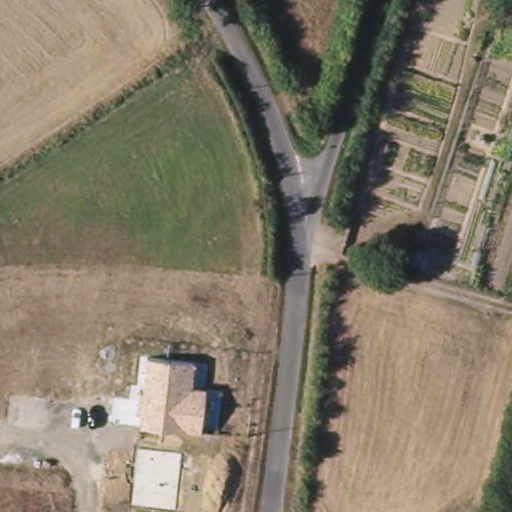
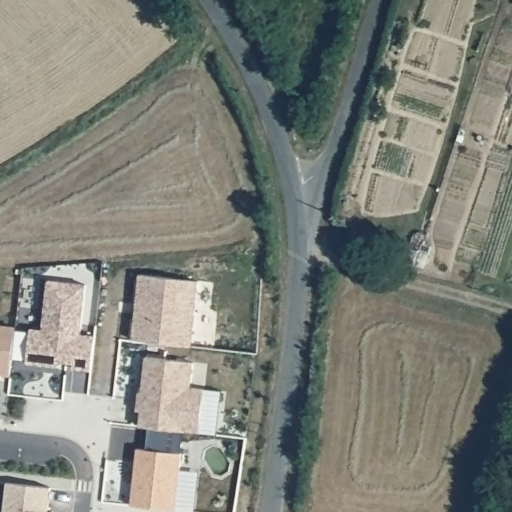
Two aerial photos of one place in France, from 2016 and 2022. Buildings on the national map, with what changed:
new [(139,273),(198,278),(192,344),(133,336),(139,273)]
new [(57,368),(35,365),(39,331),(51,332),(57,283),(94,287),(88,337),(103,339),(99,373),(81,371),(81,366),(67,365),(66,370),(57,368)]
new [(24,330),(18,377),(0,375),(1,370),(0,370),(0,328),(24,330)]
unchanged [(195,361),(191,386),(206,388),(199,436),(139,426),(141,410),(136,409),(138,389),(141,390),(146,355),(195,361)]
new [(145,452),(188,457),(182,512),(165,512),(138,509),(145,452)]
new [(50,486),(49,510),(58,512),(4,512),(7,482),(50,486)]

